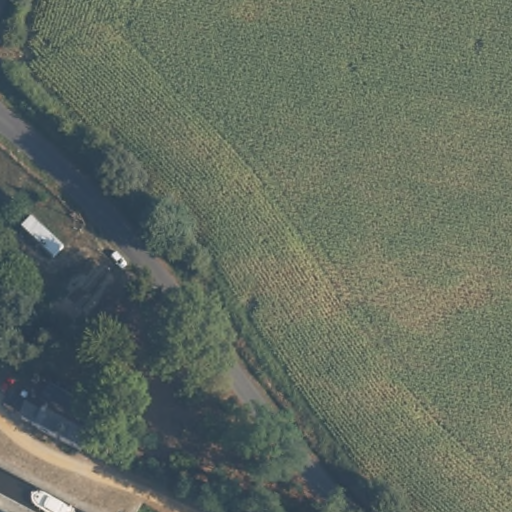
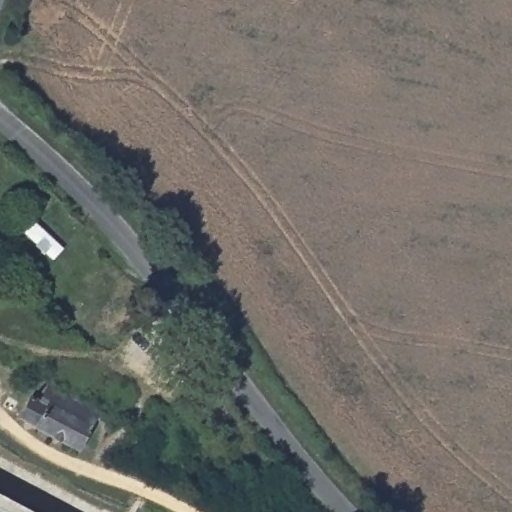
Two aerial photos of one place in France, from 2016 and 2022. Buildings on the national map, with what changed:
unchanged [(66,247),(54,258),(20,225),(34,214),(66,247)]
unchanged [(96,418),(84,415),(72,439),(66,446),(10,411),(21,394),(26,397),(36,380),(42,382),(48,373),(55,378),(51,387),(66,397),(70,391),(100,407),(96,418)]

